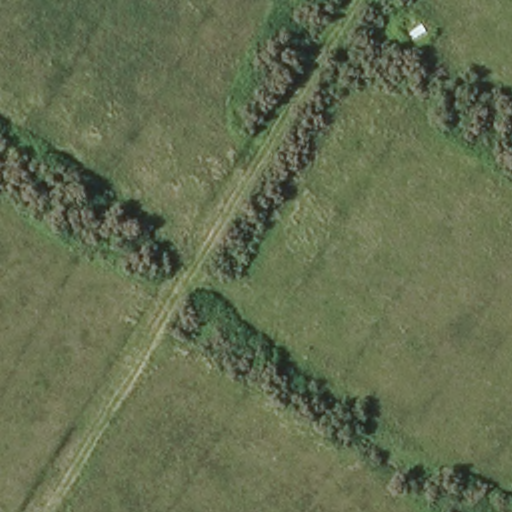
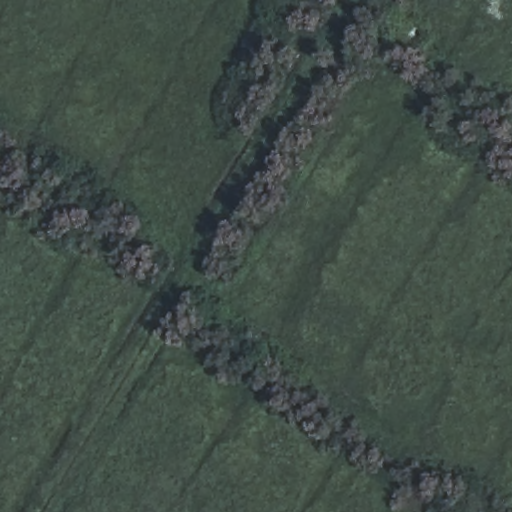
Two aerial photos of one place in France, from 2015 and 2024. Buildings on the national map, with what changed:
unchanged [(427,50),(396,35),(408,18),(437,34),(427,50)]

